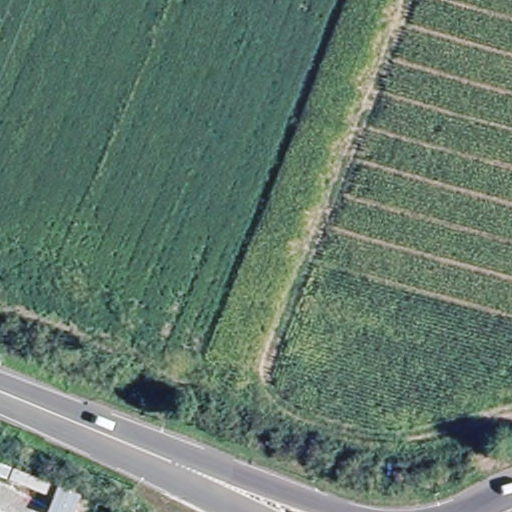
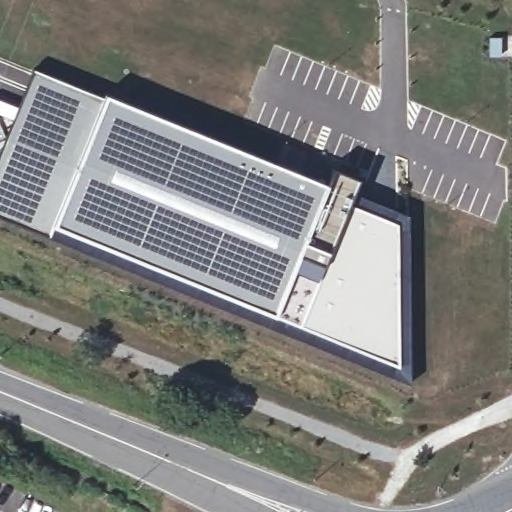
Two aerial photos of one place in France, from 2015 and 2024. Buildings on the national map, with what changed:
new [(1,144),(33,68),(101,95),(103,91),(326,182),(330,168),(357,178),(350,200),(356,201),(357,199),(363,200),(361,205),(399,221),(398,366),(384,361),(274,315),(149,267),(147,272),(117,263),(48,236),(0,215),(0,146),(1,144)]

